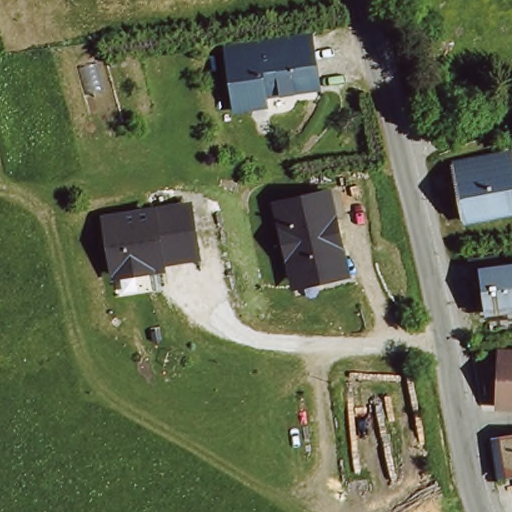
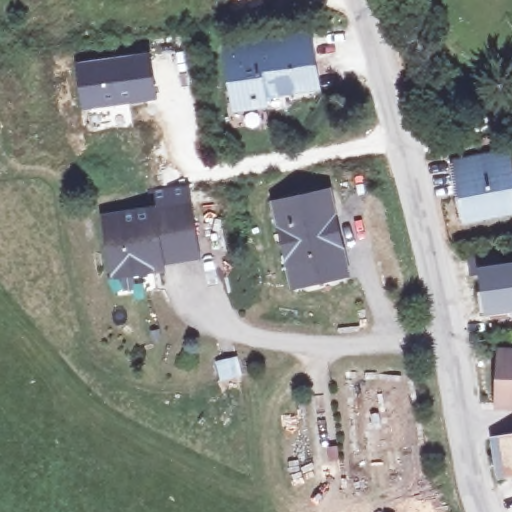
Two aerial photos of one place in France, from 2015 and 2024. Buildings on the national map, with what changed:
unchanged [(317,47),(318,89),(270,91),(270,105),(235,105),(233,49),(317,47)]
new [(151,53),(157,100),(81,110),(75,63),(151,53)]
unchanged [(512,211),(467,220),(456,165),(509,155),(512,171),(512,211)]
unchanged [(327,194),(331,219),(338,218),(343,249),(336,250),(340,278),(312,282),(311,274),(292,277),(280,200),(327,194)]
unchanged [(190,210),(194,258),(158,261),(159,269),(110,273),(105,217),(190,210)]
unchanged [(487,274),(477,274),(475,260),(500,258),(502,269),(512,268),(512,307),(492,310),(487,274)]
unchanged [(505,351),(512,351),(512,405),(502,405),(505,351)]
unchanged [(487,438),(512,434),(512,472),(493,475),(487,438)]

